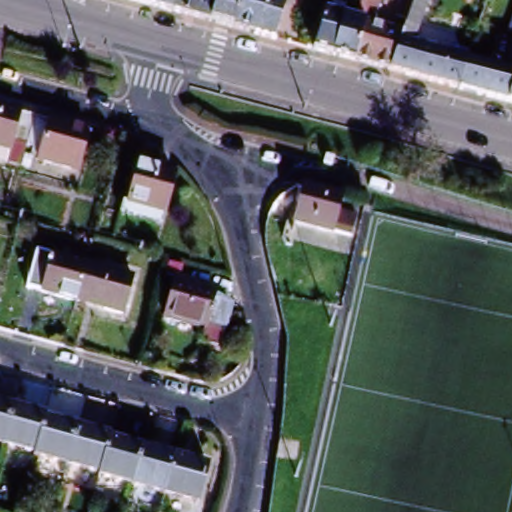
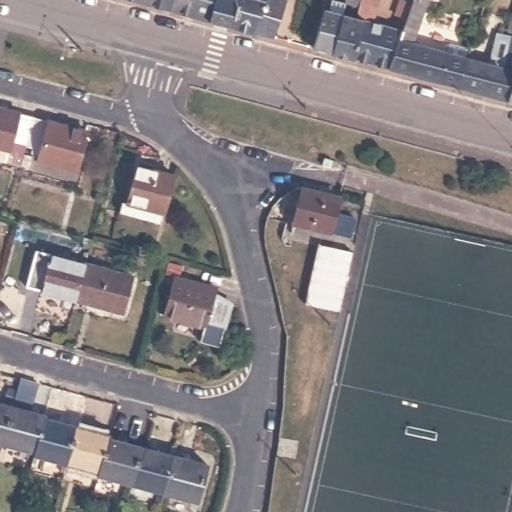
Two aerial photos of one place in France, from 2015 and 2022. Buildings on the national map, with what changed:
unchanged [(270,45),(253,40),(229,33),(205,27),(187,22),(167,16),(150,11),(138,8),(108,0),(283,0),(270,45)]
unchanged [(391,70),(371,65),(354,60),(334,55),(316,51),(326,12),(331,13),(333,4),(345,7),(343,16),(356,19),(364,21),(369,22),(381,25),(403,30),(406,23),(399,21),(400,16),(395,14),(400,0),(426,0),(412,44),(449,54),(458,57),(462,44),(472,46),(470,52),(488,57),(486,64),(490,65),(505,69),(512,49),(512,102),(509,102),(480,94),(458,88),(441,84),(391,70)]
unchanged [(360,8),(346,5),(347,0),(362,0),(360,8)]
unchanged [(0,142),(0,113),(18,118),(10,145),(0,142)]
unchanged [(18,118),(73,132),(62,172),(22,161),(24,156),(15,154),(17,147),(10,145),(18,118)]
unchanged [(325,165),(327,158),(332,159),(334,160),(332,167),(325,165)]
unchanged [(155,223),(119,213),(133,164),(169,174),(155,223)]
unchanged [(337,238),(329,237),(296,228),(306,193),(344,202),(345,203),(344,207),(341,220),(361,225),(356,244),(337,238)]
unchanged [(25,287),(35,250),(85,264),(74,301),(25,287)]
unchanged [(85,264),(134,277),(124,315),(74,301),(85,264)]
unchanged [(203,338),(207,325),(165,314),(175,280),(215,290),(214,297),(230,301),(223,325),(219,342),(203,338)]
unchanged [(12,409),(3,444),(0,443),(0,405),(12,409)]
unchanged [(12,409),(45,418),(45,420),(36,453),(3,444),(12,409)]
unchanged [(45,420),(76,428),(67,463),(36,454),(36,453),(45,420)]
unchanged [(76,428),(109,437),(109,439),(100,472),(67,463),(76,428)]
unchanged [(109,439),(142,448),(133,483),(100,474),(100,472),(109,439)]
unchanged [(133,483),(142,448),(175,457),(166,492),(133,483)]
unchanged [(175,457),(208,466),(199,501),(166,492),(175,457)]

